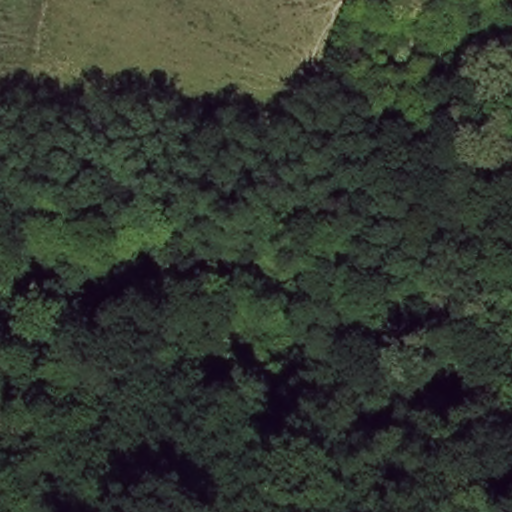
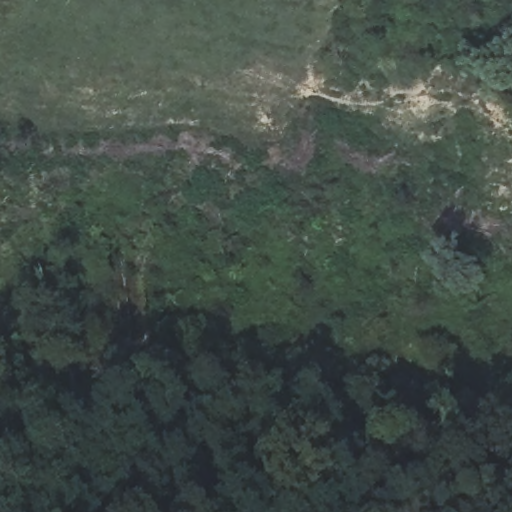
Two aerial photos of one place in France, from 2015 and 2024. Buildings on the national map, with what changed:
[]

